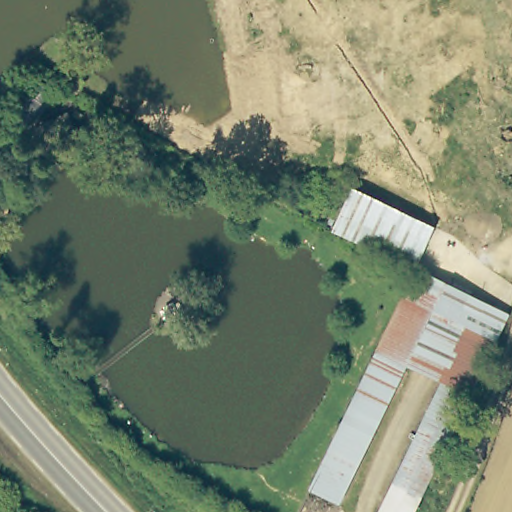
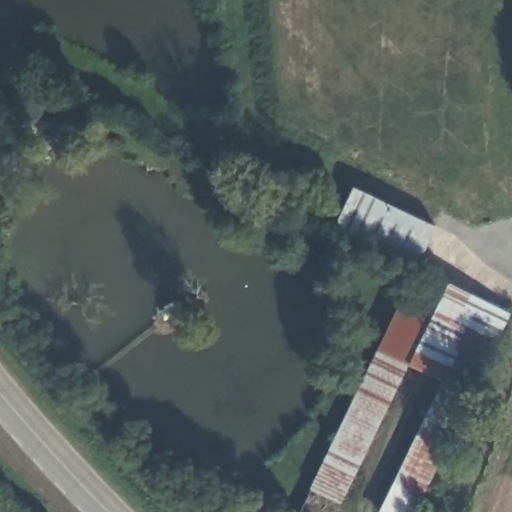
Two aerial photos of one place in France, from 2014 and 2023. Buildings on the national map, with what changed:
unchanged [(68,66),(83,77),(75,90),(57,81),(68,66)]
unchanged [(54,93),(24,128),(7,115),(37,80),(54,93)]
unchanged [(434,227),(415,267),(329,231),(350,187),(434,227)]
unchanged [(505,311),(498,329),(491,344),(473,384),(467,397),(443,385),(411,368),(382,352),(419,280),(425,269),(505,311)]
unchanged [(382,352),(411,368),(342,503),(315,487),(382,352)]
unchanged [(413,512),(378,512),(443,385),(467,397),(413,512)]

